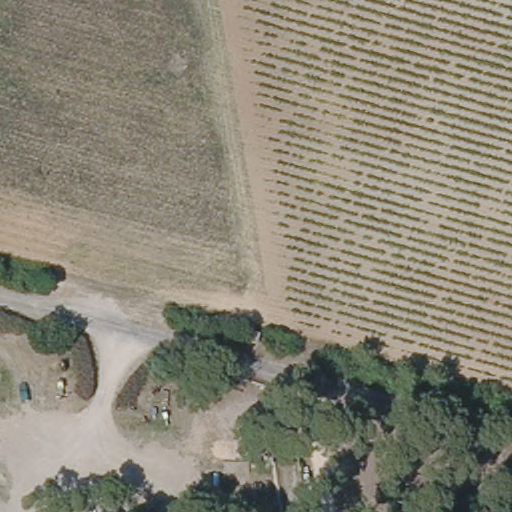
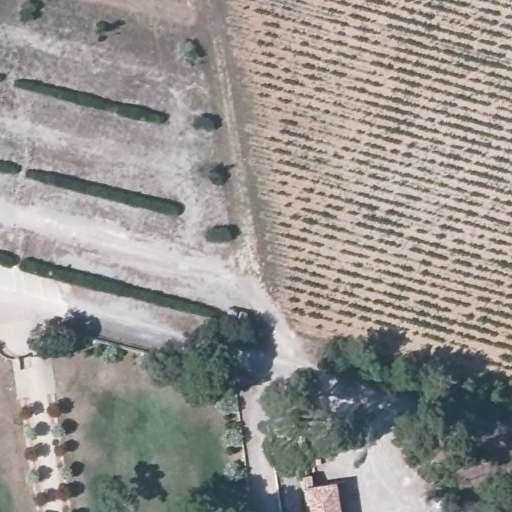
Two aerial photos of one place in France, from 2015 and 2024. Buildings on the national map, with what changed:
new [(341,512),(307,512),(304,487),(337,482),(341,512)]

